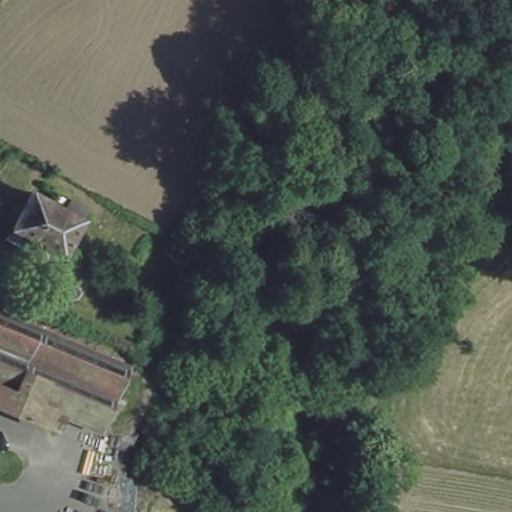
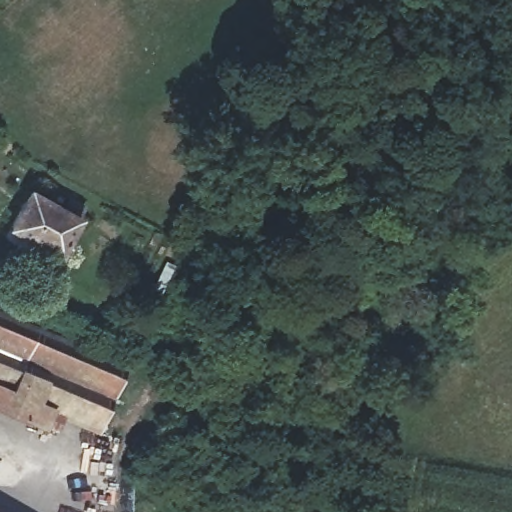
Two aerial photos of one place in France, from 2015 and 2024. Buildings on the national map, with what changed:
unchanged [(87,213),(62,261),(10,234),(33,186),(87,213)]
unchanged [(62,424),(0,398),(0,304),(131,359),(103,423),(97,438),(80,431),(62,424)]

